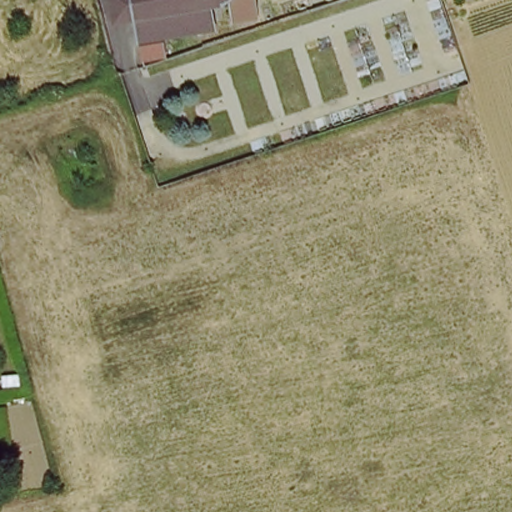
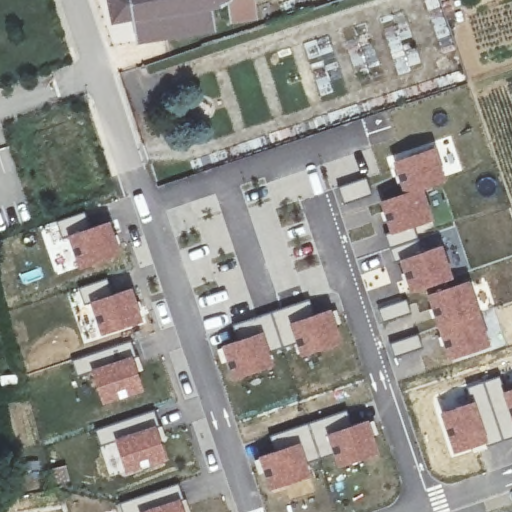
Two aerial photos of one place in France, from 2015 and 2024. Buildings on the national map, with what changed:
unchanged [(236,25),(230,2),(218,4),(207,8),(210,25),(135,39),(131,14),(110,17),(107,0),(253,0),(256,17),(236,25)]
unchanged [(158,40),(161,53),(139,58),(137,45),(158,40)]
new [(434,148),(445,180),(421,188),(432,220),(413,226),(423,252),(441,248),(451,277),(411,291),(402,262),(394,264),(385,236),(391,233),(381,203),(406,194),(395,162),(434,148)]
new [(85,211),(91,229),(109,225),(119,256),(80,270),(69,239),(62,241),(55,222),(85,211)]
new [(109,278),(114,294),(133,289),(143,321),(104,336),(93,303),(85,306),(80,288),(109,278)]
new [(468,282),(488,346),(450,358),(429,296),(468,282)]
new [(237,341),(232,325),(311,300),(315,314),(331,310),(341,342),(301,356),(298,344),(269,353),(272,366),(235,378),(224,345),(237,341)]
new [(132,341),(137,356),(132,358),(143,389),(103,403),(93,373),(77,378),(73,362),(132,341)]
new [(466,388),(500,376),(505,393),(512,391),(512,440),(487,447),(485,442),(455,454),(442,413),(472,403),(466,388)]
new [(156,410),(160,426),(155,428),(165,458),(127,472),(117,441),(102,448),(97,431),(156,410)]
new [(348,411),(352,426),(367,421),(377,452),(339,465),(336,453),(306,464),(309,475),(271,489),(261,457),(276,452),(271,437),(348,411)]
new [(39,458),(40,487),(23,489),(20,460),(39,458)]
new [(184,500),(181,501),(184,512),(124,512),(122,504),(179,484),(184,500)]

